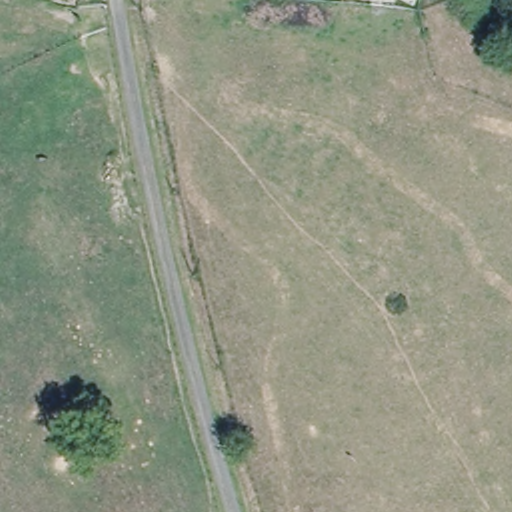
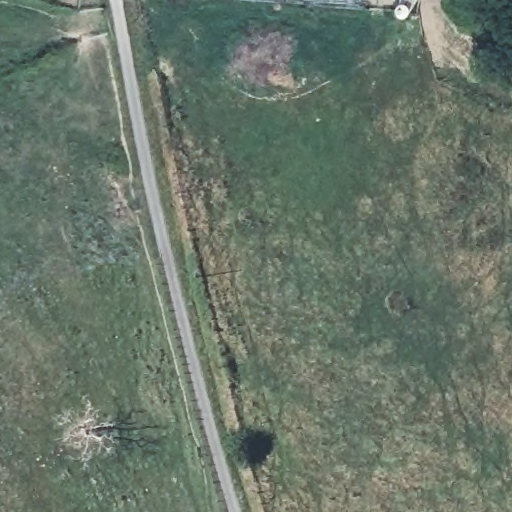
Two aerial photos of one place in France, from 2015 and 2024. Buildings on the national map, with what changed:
[]

